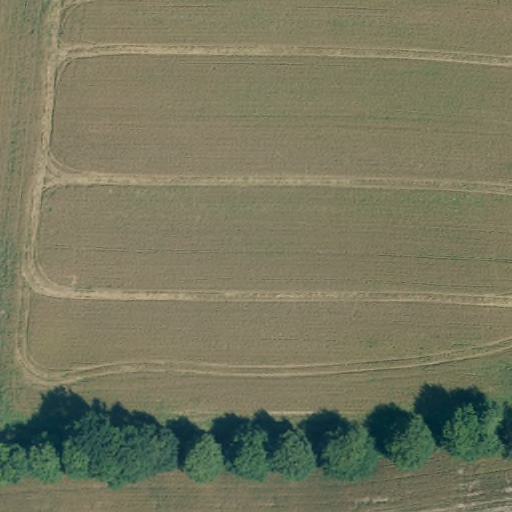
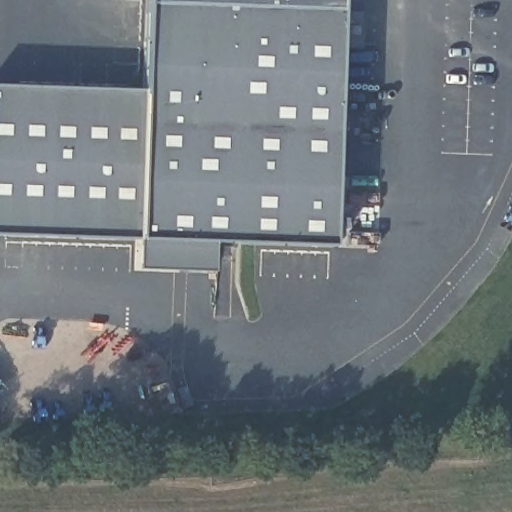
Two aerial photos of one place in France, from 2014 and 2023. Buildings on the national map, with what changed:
new [(148,0),(340,0),(332,247),(140,240),(0,236),(0,88),(145,91),(148,0)]

